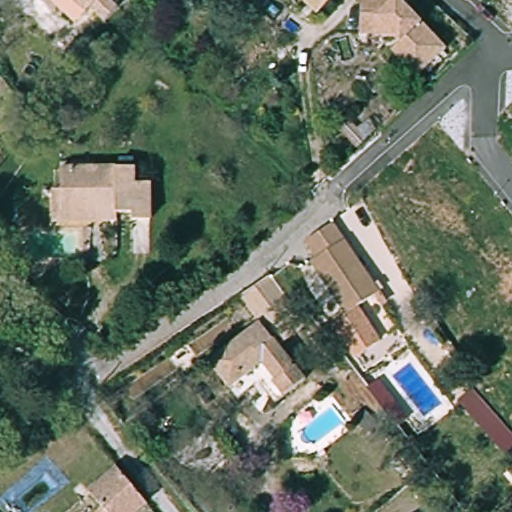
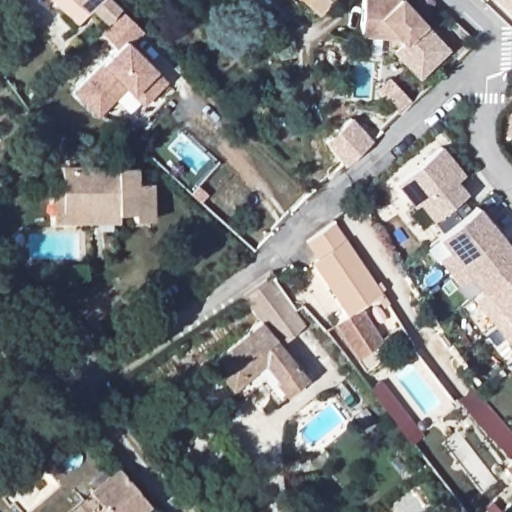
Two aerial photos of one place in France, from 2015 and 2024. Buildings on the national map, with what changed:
unchanged [(66,19),(47,0),(109,0),(124,13),(111,26),(96,12),(93,17),(78,31),(66,19)]
unchanged [(306,24),(291,11),(298,2),(296,0),(330,0),(306,24)]
unchanged [(392,52),(404,41),(396,33),(359,27),(364,0),(407,0),(452,44),(431,66),(419,79),(392,52)]
new [(498,0),(512,0),(512,14),(498,0)]
new [(100,64),(115,48),(100,33),(108,23),(111,26),(124,13),(143,32),(130,46),(155,70),(166,81),(141,107),(131,95),(124,88),(96,118),(71,92),(100,64)]
new [(443,145),(464,174),(458,180),(468,193),(432,221),(419,204),(413,208),(394,183),(443,145)]
unchanged [(65,210),(64,191),(64,164),(135,165),(135,178),(151,178),(149,218),(134,217),(134,211),(120,211),(65,210)]
unchanged [(119,224),(54,223),(54,191),(64,191),(65,210),(120,211),(119,224)]
new [(477,206),(512,251),(512,355),(471,297),(478,291),(468,279),(459,288),(437,260),(447,251),(436,238),(477,206)]
unchanged [(339,221),(383,296),(364,308),(384,342),(354,360),(334,325),(349,318),(316,260),(321,258),(311,237),(339,221)]
new [(242,298),(269,277),(306,327),(282,345),(262,317),(259,319),(242,298)]
unchanged [(262,317),(304,375),(273,401),(256,378),(238,393),(210,356),(262,317)]
unchanged [(474,391),(512,434),(512,465),(460,402),(474,391)]
unchanged [(149,510),(147,512),(103,512),(103,511),(90,494),(122,475),(149,510)]
unchanged [(103,512),(101,512),(103,511),(103,512)]

